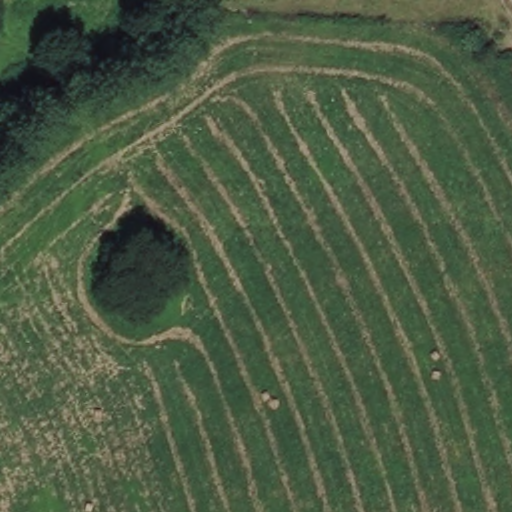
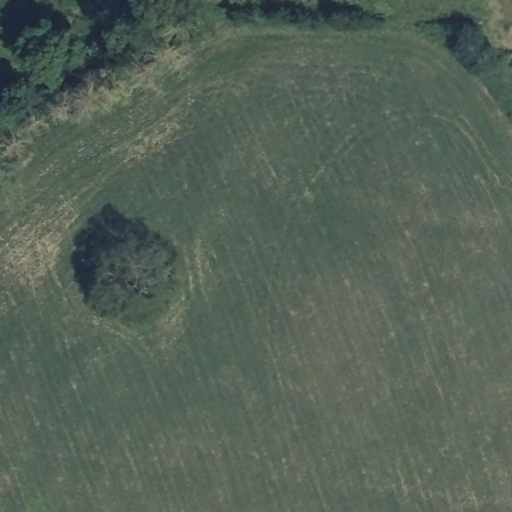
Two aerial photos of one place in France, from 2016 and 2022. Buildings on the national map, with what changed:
[]

